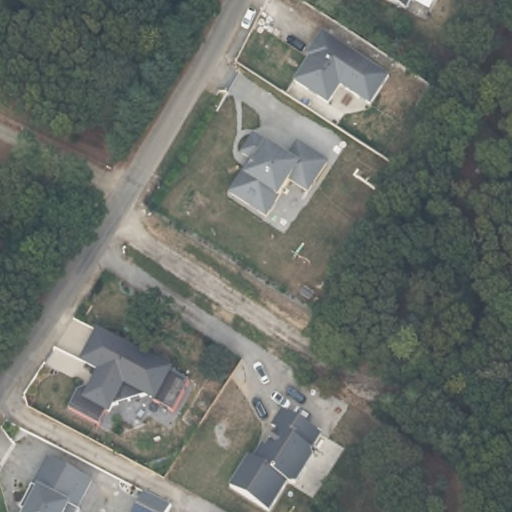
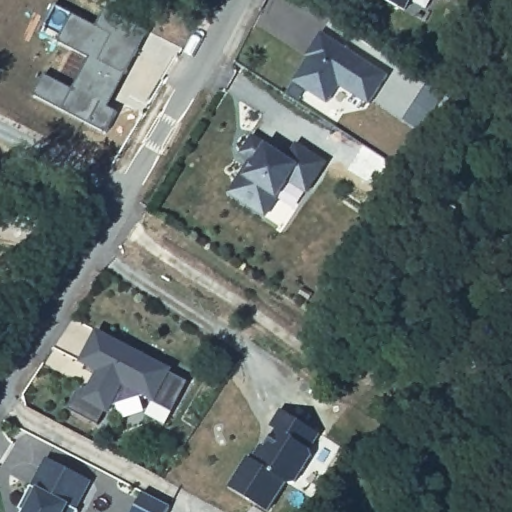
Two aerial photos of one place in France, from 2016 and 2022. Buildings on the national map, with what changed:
unchanged [(404,10),(384,0),(409,0),(404,10)]
new [(73,87),(89,57),(40,31),(54,3),(96,24),(105,7),(150,30),(112,106),(119,111),(107,133),(34,94),(45,73),(73,87)]
unchanged [(390,74),(373,105),(340,86),(327,104),(290,82),(318,28),(390,74)]
unchanged [(282,152),(289,141),(327,166),(309,198),(291,186),(268,219),(223,194),(243,160),(235,155),(252,129),(282,152)]
unchanged [(189,380),(173,411),(124,386),(99,425),(68,408),(91,368),(77,360),(93,329),(189,380)]
unchanged [(319,435),(268,512),(226,486),(277,409),(319,435)]
unchanged [(77,512),(12,512),(43,458),(92,481),(77,512)]
unchanged [(339,485),(329,502),(306,490),(316,473),(339,485)]
unchanged [(168,512),(133,512),(142,492),(170,506),(168,512)]

